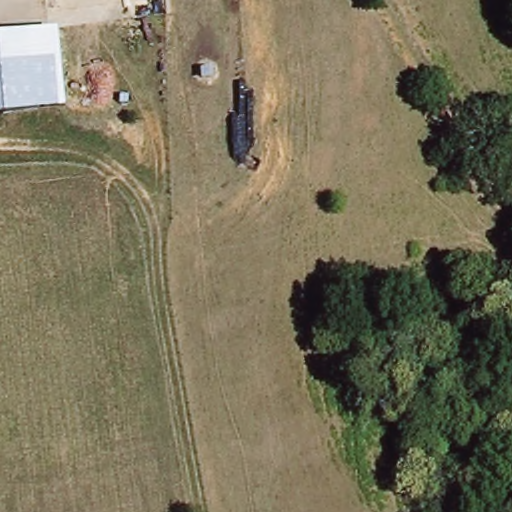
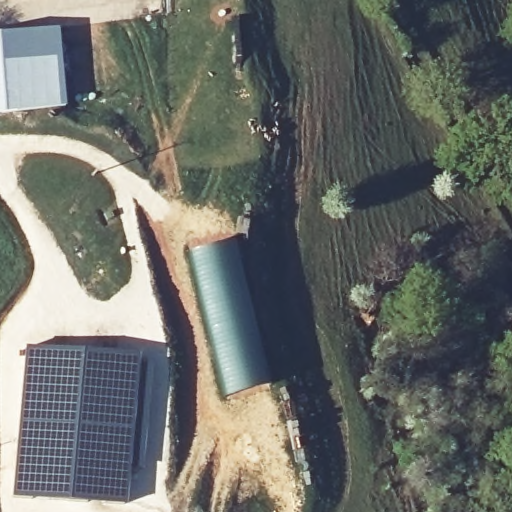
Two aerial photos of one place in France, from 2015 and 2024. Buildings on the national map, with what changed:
unchanged [(49,27),(60,100),(0,109),(0,34),(49,27)]
new [(233,238),(270,384),(223,397),(208,345),(196,297),(188,250),(233,238)]
new [(20,364),(15,363),(17,345),(52,338),(53,343),(104,350),(127,350),(127,353),(139,354),(131,450),(131,477),(128,505),(39,501),(39,500),(11,496),(20,364)]
new [(127,350),(129,350),(130,340),(166,344),(169,389),(164,462),(155,462),(155,475),(139,474),(137,478),(131,477),(131,450),(139,354),(127,353),(127,350)]
new [(6,371),(14,371),(15,363),(20,364),(11,496),(39,500),(39,501),(39,512),(5,512),(2,492),(0,409),(0,367),(6,367),(6,371)]

